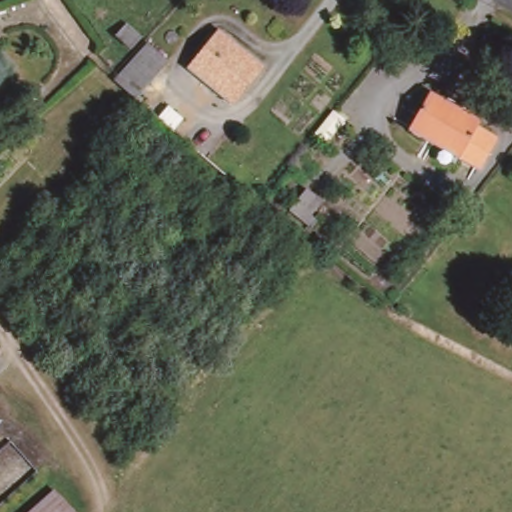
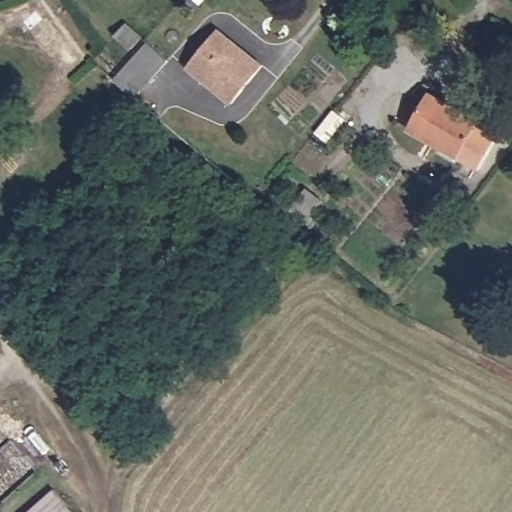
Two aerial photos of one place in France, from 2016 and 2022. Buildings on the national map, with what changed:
unchanged [(269,66),(233,106),(194,71),(228,32),(269,66)]
unchanged [(191,76),(160,106),(141,89),(171,58),(191,76)]
unchanged [(453,105),(457,99),(469,108),(465,113),(482,123),(480,128),(500,141),(482,170),(417,130),(439,96),(453,105)]
unchanged [(353,215),(345,224),(352,232),(344,241),(321,222),(338,202),(353,215)]
unchanged [(0,357),(0,343),(7,352),(0,357)]
unchanged [(71,500),(81,512),(55,512),(71,500)]

